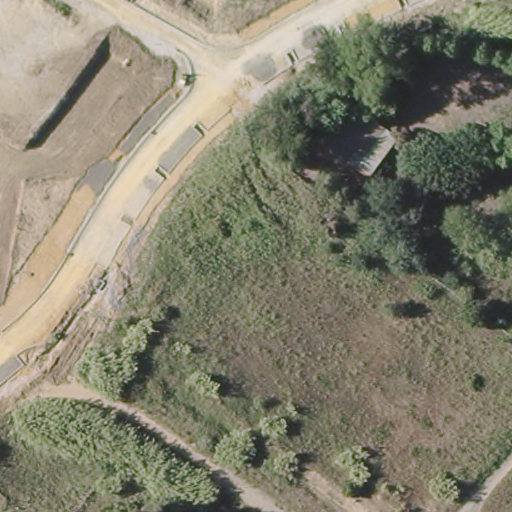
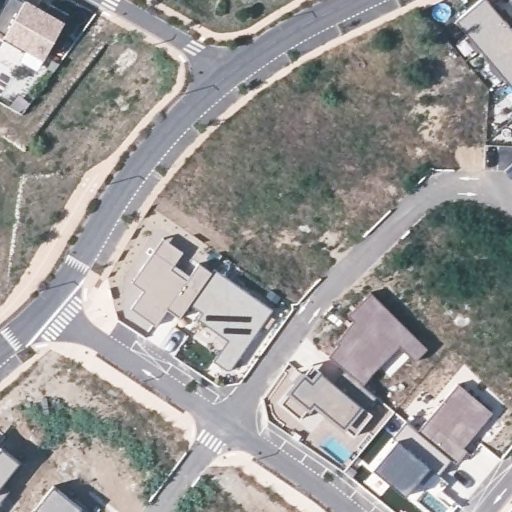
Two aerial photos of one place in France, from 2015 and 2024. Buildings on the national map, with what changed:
new [(38,4),(48,9),(50,5),(68,15),(45,57),(27,48),(25,52),(3,40),(5,35),(0,32),(0,12),(7,0),(20,0),(35,8),(38,4)]
new [(455,23),(482,0),(487,0),(512,29),(512,89),(455,23)]
demolished [(360,167),(319,137),(348,98),(389,128),(360,167)]
new [(273,309),(229,372),(213,360),(225,343),(196,318),(198,314),(189,306),(180,318),(167,309),(148,333),(123,314),(122,313),(121,294),(127,282),(162,236),(183,251),(174,264),(189,274),(198,262),(213,271),(216,269),(273,309)]
new [(353,320),(347,315),(370,291),(428,348),(416,360),(400,347),(364,384),(328,354),(353,320)]
new [(355,436),(346,429),(344,431),(315,406),(310,412),(307,409),(300,417),(281,403),(288,393),(286,392),(294,383),(291,381),(300,371),(304,374),(306,372),(311,364),(320,371),(333,382),(345,368),(364,384),(376,396),(366,408),(372,415),(355,436)]
new [(458,383),(493,412),(457,462),(451,457),(439,448),(418,432),(458,383)]
new [(435,471),(425,482),(420,479),(406,496),(374,470),(397,441),(393,437),(407,422),(418,431),(439,448),(451,457),(452,458),(438,474),(435,471)]
new [(0,486),(8,492),(0,502),(0,446),(20,461),(0,486)]
new [(87,512),(33,512),(35,509),(54,485),(87,512)]

